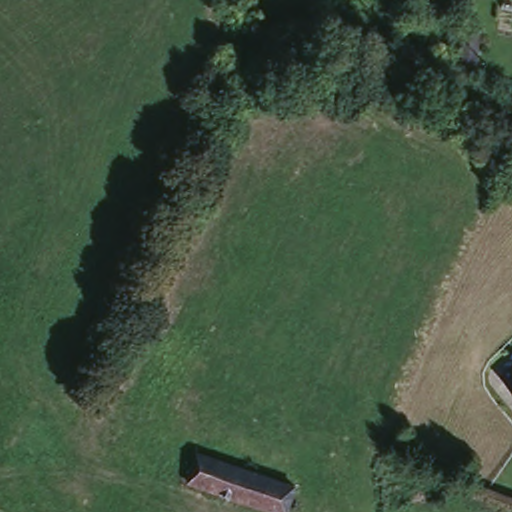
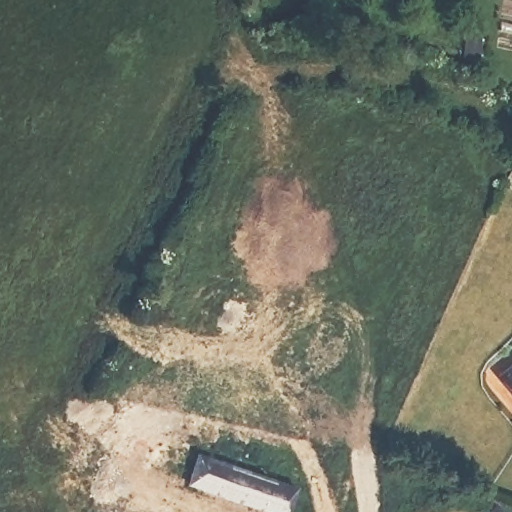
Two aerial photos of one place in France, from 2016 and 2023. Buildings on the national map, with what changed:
unchanged [(512,368),(512,389),(502,376),(512,368)]
unchanged [(270,512),(183,483),(191,454),(290,487),(283,512),(270,512)]

